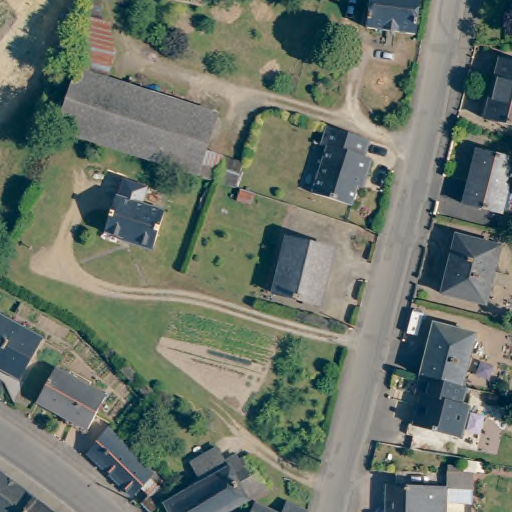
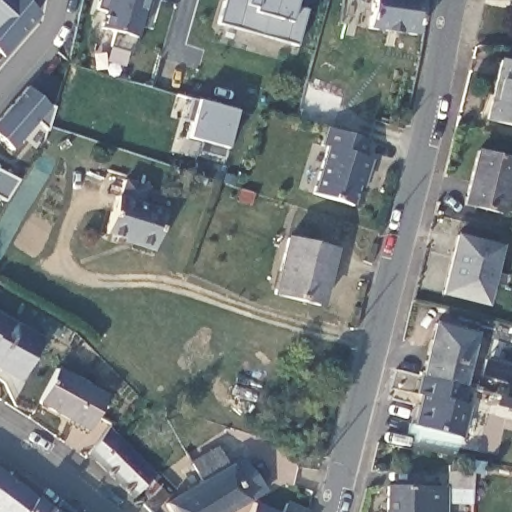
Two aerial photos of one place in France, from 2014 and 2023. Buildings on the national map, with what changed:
new [(34,17),(0,55),(0,0),(17,0),(34,17)]
new [(141,28),(136,27),(129,53),(107,47),(111,33),(98,29),(103,13),(93,10),(96,0),(149,0),(141,28)]
new [(292,6),(305,10),(295,46),(215,24),(222,0),(294,0),(292,6)]
unchanged [(339,2),(331,0),(339,0),(339,2)]
unchanged [(414,34),(366,27),(370,0),(419,0),(414,34)]
unchanged [(485,119),(500,61),(512,64),(512,126),(485,119)]
new [(51,108),(56,106),(47,130),(38,122),(12,151),(0,140),(0,118),(28,87),(51,108)]
new [(221,159),(196,152),(198,142),(184,138),(189,123),(183,121),(189,99),(234,111),(221,159)]
unchanged [(357,187),(354,186),(349,202),(314,191),(326,146),(321,144),(326,126),(369,140),(364,159),(370,160),(365,179),(362,189),(357,187)]
demolished [(236,183),(217,178),(197,171),(205,145),(243,158),(236,183)]
unchanged [(499,209),(463,201),(476,147),(512,155),(512,161),(507,177),(512,179),(512,210),(500,206),(499,209)]
new [(5,201),(0,198),(0,171),(19,180),(5,201)]
unchanged [(124,238),(106,233),(117,198),(165,213),(152,252),(133,246),(123,243),(124,238)]
unchanged [(484,304),(441,293),(456,235),(500,247),(484,304)]
unchanged [(332,250),(318,305),(273,293),(288,238),(332,250)]
unchanged [(26,380),(0,366),(0,312),(48,339),(26,380)]
unchanged [(433,326),(473,335),(461,387),(420,377),(433,326)]
unchanged [(105,397),(88,430),(37,403),(55,369),(105,397)]
unchanged [(414,426),(421,395),(416,394),(420,377),(461,387),(464,388),(460,407),(467,408),(462,428),(460,437),(449,434),(414,426)]
unchanged [(133,495),(89,452),(108,428),(114,433),(135,454),(155,472),(133,495)]
unchanged [(222,449),(231,461),(240,455),(244,462),(248,460),(271,489),(254,500),(232,512),(174,512),(170,505),(185,496),(209,482),(198,464),(222,449)]
unchanged [(472,486),(448,485),(448,473),(448,465),(463,466),(463,473),(472,473),(472,486)]
unchanged [(34,497),(23,512),(0,512),(0,473),(7,476),(34,497)]
unchanged [(163,487),(172,497),(157,512),(152,512),(145,505),(163,487)]
unchanged [(387,512),(387,487),(445,488),(445,512),(387,512)]
unchanged [(54,512),(23,512),(34,497),(54,512)]
unchanged [(281,512),(256,512),(260,502),(281,512)]
unchanged [(311,512),(287,512),(291,503),(311,512)]

